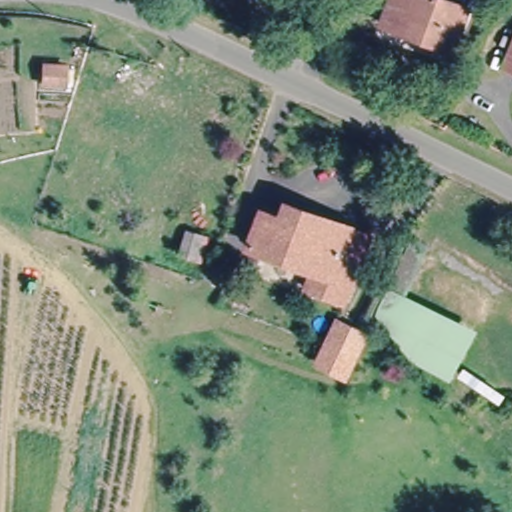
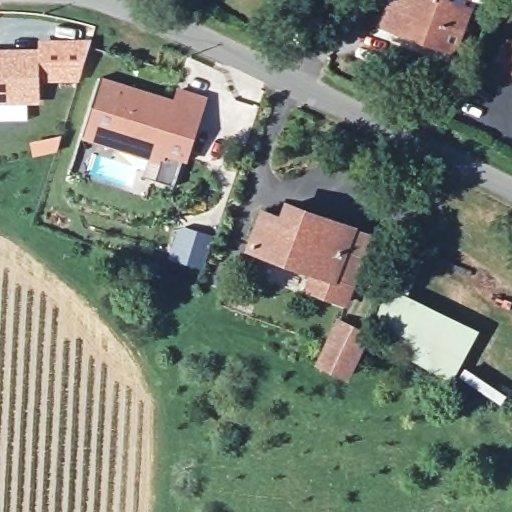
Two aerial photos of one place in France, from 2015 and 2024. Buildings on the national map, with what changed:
unchanged [(387,0),(479,0),(475,10),(464,7),(450,46),(380,20),(387,0)]
new [(92,38),(80,81),(37,80),(37,47),(39,39),(92,38)]
unchanged [(512,46),(512,64),(506,61),(512,46)]
new [(37,47),(37,94),(0,95),(0,48),(37,47)]
demolished [(67,88),(42,87),(42,64),(67,65),(67,88)]
new [(172,100),(177,88),(206,98),(172,185),(154,179),(160,161),(82,137),(102,77),(172,100)]
demolished [(82,126),(93,89),(148,107),(139,139),(101,125),(99,132),(82,126)]
unchanged [(308,268),(258,249),(271,212),(278,214),(291,218),(297,205),(328,216),(308,268)]
unchanged [(308,268),(328,216),(363,228),(363,230),(381,237),(353,305),(342,301),(318,291),(325,274),(308,268)]
unchanged [(439,374),(409,357),(420,334),(393,321),(378,314),(412,241),(427,248),(403,299),(431,312),(461,326),(439,374)]
unchanged [(347,377),(319,364),(328,344),(338,321),(367,334),(347,377)]

